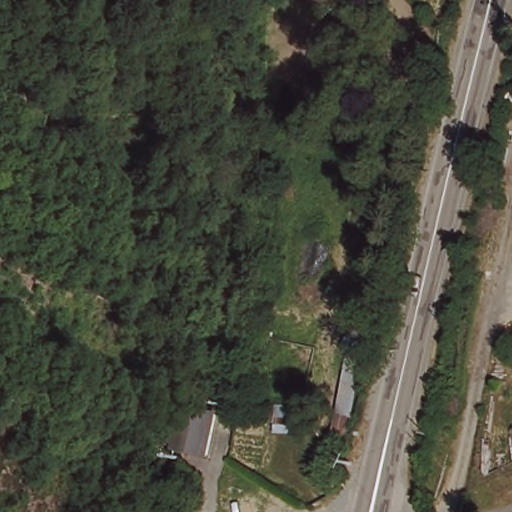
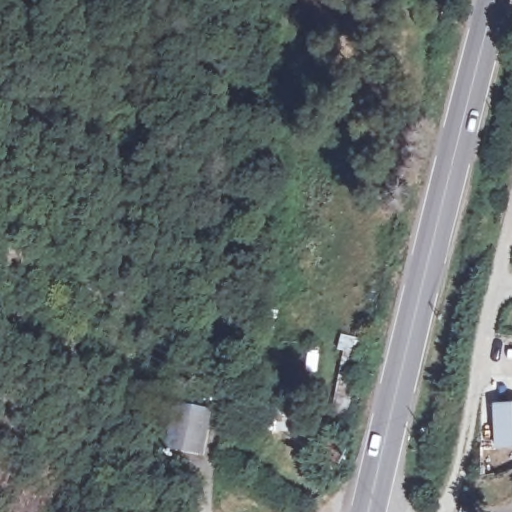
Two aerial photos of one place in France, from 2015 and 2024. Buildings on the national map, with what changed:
unchanged [(348,326),(367,330),(346,438),(326,434),(348,326)]
unchanged [(267,433),(267,422),(262,421),(263,403),(286,405),(286,432),(267,433)]
new [(495,405),(512,404),(512,451),(497,452),(495,405)]
unchanged [(207,411),(201,455),(193,454),(165,451),(169,407),(200,411),(207,411)]

